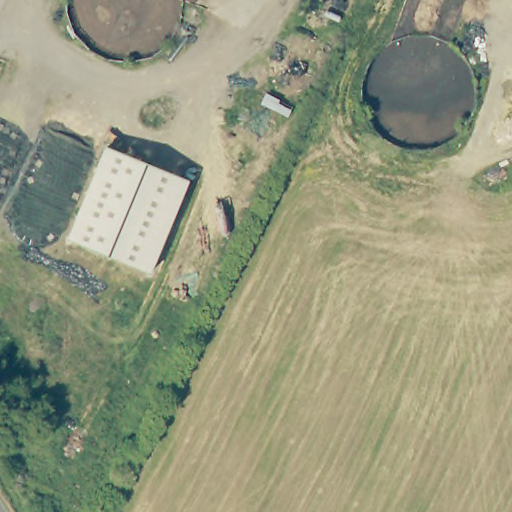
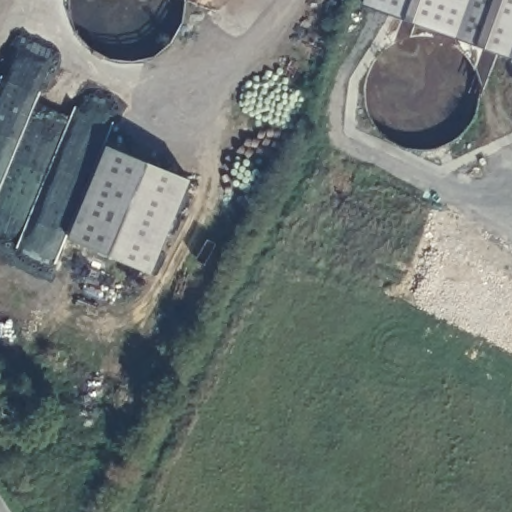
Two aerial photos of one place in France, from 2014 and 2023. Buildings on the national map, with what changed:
new [(365,0),(512,0),(512,60),(363,5),(365,0)]
unchanged [(68,240),(106,149),(189,183),(151,274),(68,240)]

